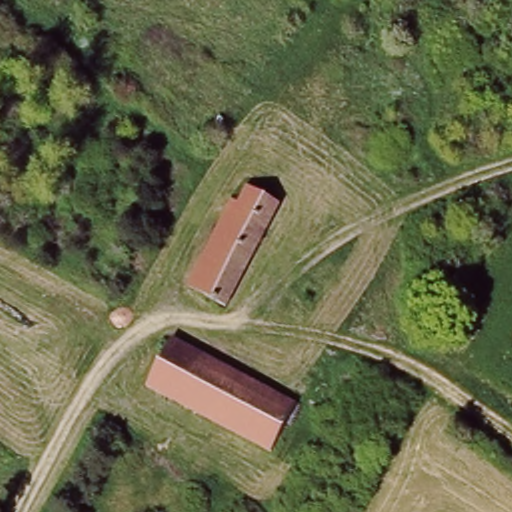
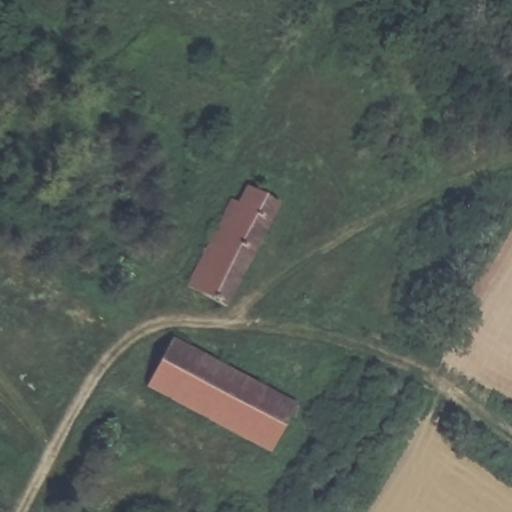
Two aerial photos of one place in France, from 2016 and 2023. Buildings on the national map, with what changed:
unchanged [(235,195),(245,199),(252,187),(282,205),(225,303),(185,279),(235,195)]
unchanged [(300,408),(270,458),(135,384),(164,335),(300,408)]

